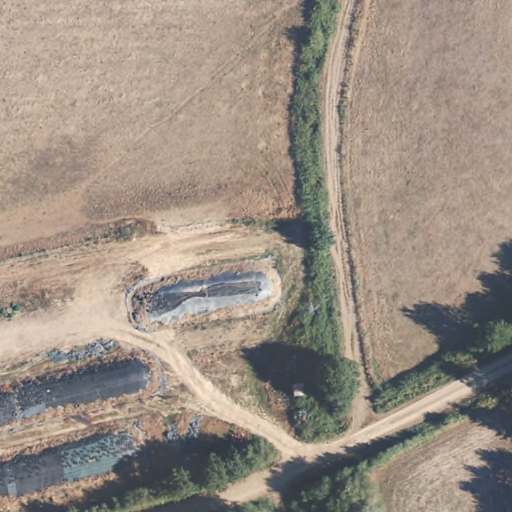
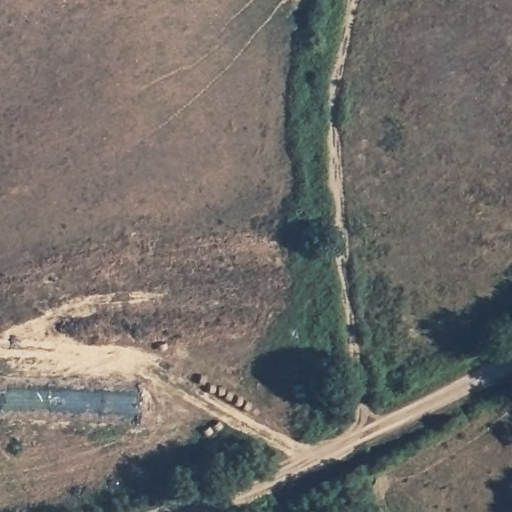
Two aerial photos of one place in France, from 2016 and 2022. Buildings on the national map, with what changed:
[]

